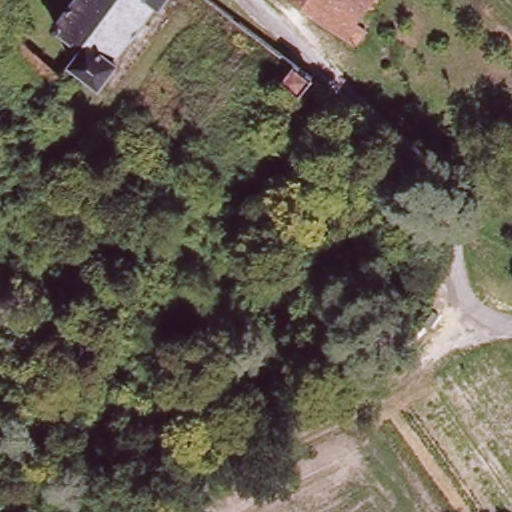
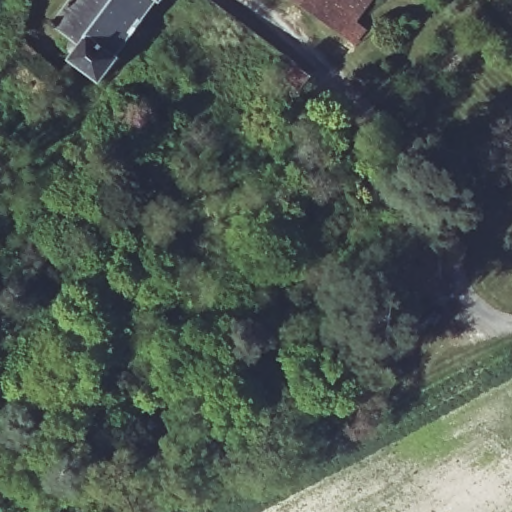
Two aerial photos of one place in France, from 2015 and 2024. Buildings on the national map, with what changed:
unchanged [(26,0),(47,0),(40,10),(26,0)]
unchanged [(58,30),(57,31),(79,0),(168,0),(163,6),(160,4),(117,60),(121,63),(102,88),(76,68),(80,64),(77,64),(75,64),(72,63),(70,62),(69,60),(67,58),(66,55),(66,53),(67,50),(68,48),(70,46),(71,44),(74,44),(76,44),(77,44),(58,30)]
unchanged [(377,0),(358,25),(370,33),(360,48),(293,0),(377,0)]
unchanged [(70,79),(46,104),(44,105),(42,105),(5,74),(29,46),(70,79)]

